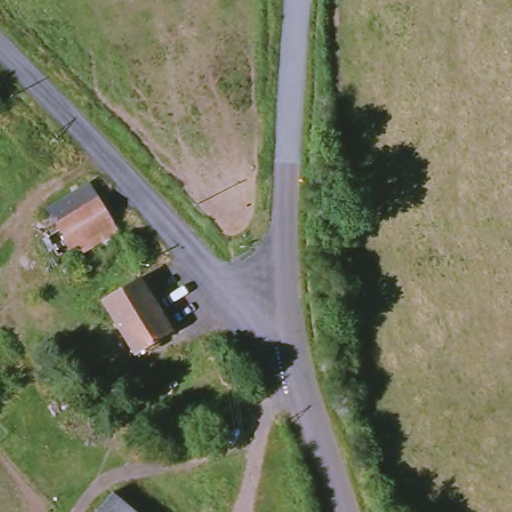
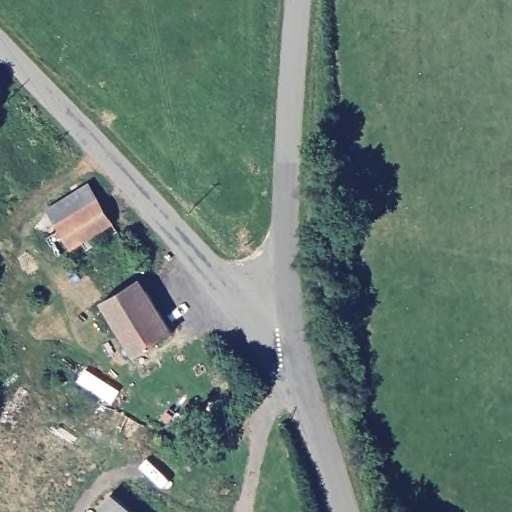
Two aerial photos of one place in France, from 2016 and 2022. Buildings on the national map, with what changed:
unchanged [(118,231),(76,256),(48,209),(88,183),(118,231)]
unchanged [(171,332),(134,354),(102,301),(139,278),(171,332)]
unchanged [(118,391),(110,401),(79,380),(86,370),(118,391)]
unchanged [(139,512),(101,512),(116,493),(139,512)]

